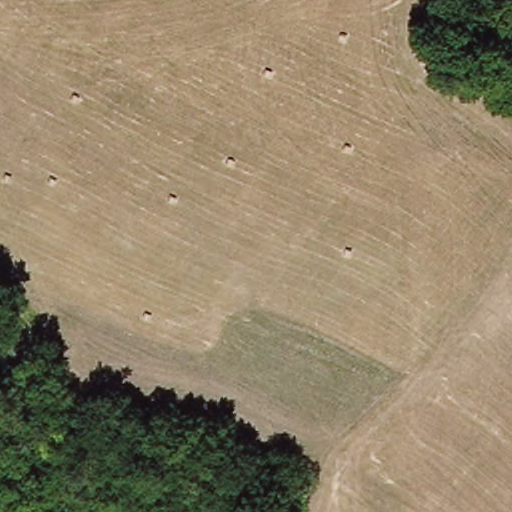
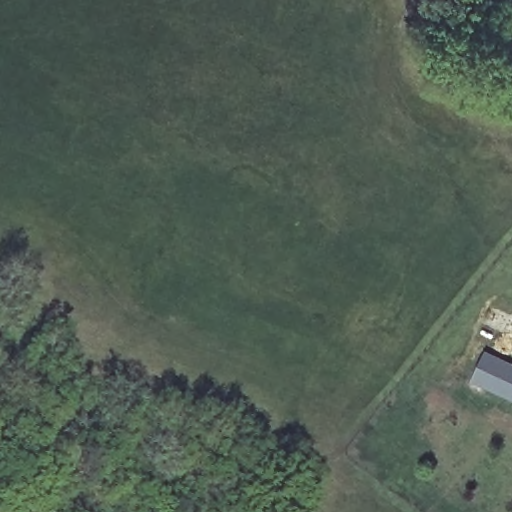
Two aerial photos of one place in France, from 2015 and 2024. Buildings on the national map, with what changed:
new [(475,382),(487,351),(512,362),(512,398),(475,382)]

